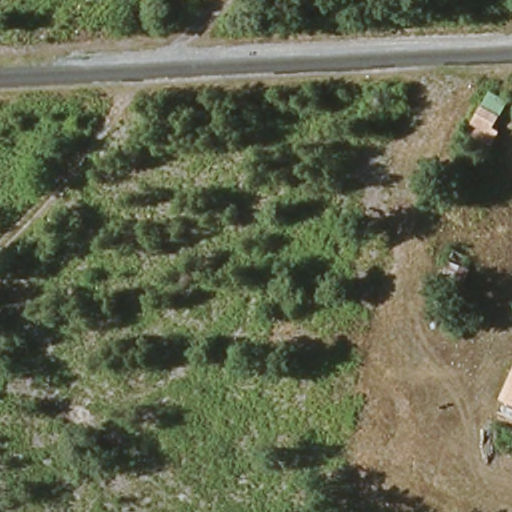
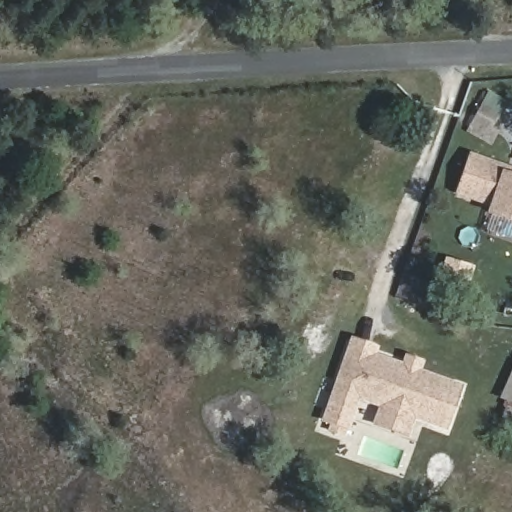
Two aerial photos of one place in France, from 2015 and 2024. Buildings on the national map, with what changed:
unchanged [(497,144),(471,127),(478,116),(493,92),(507,102),(494,125),(504,132),(497,144)]
new [(488,215),(490,207),(454,195),(469,152),(512,167),(512,223),(488,215)]
unchanged [(443,275),(449,259),(468,267),(461,284),(443,275)]
new [(376,354),(402,363),(406,354),(424,360),(421,370),(463,384),(447,431),(414,419),(408,438),(373,426),(379,407),(360,400),(349,431),(323,422),(352,338),(379,346),(376,354)]
unchanged [(499,418),(507,401),(504,400),(512,382),(512,423),(499,418)]

